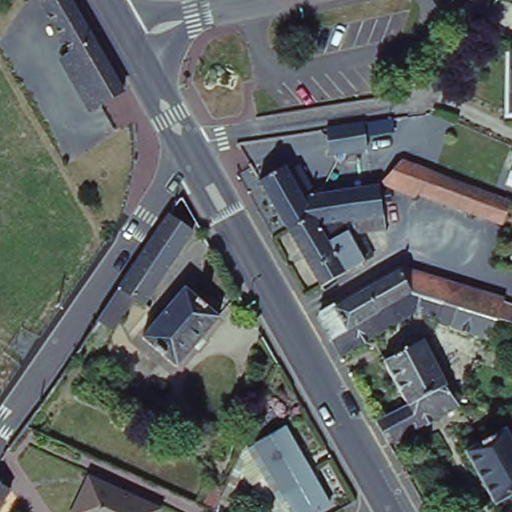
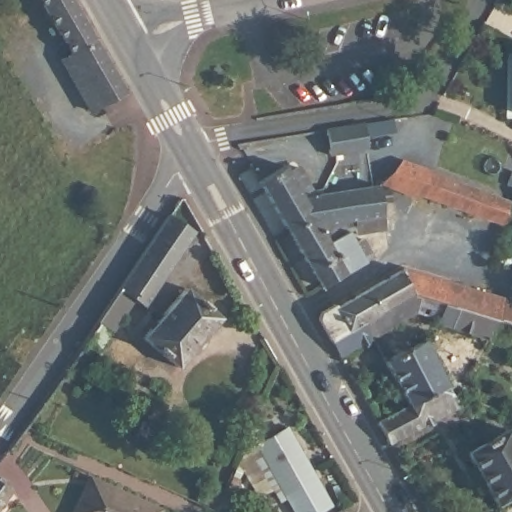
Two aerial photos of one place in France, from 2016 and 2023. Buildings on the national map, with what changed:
unchanged [(124,96),(94,114),(64,62),(74,57),(42,0),(70,0),(124,96)]
unchanged [(506,51),(512,51),(512,110),(508,110),(506,51)]
unchanged [(412,129),(365,137),(367,152),(327,158),(323,132),(409,118),(412,129)]
unchanged [(474,215),(417,193),(414,198),(380,185),(399,164),(483,195),(507,203),(508,204),(501,225),(474,215)]
unchanged [(351,237),(349,225),(318,229),(311,218),(285,233),(256,182),(283,168),(287,176),(297,170),(313,197),(375,190),(379,222),(380,234),(351,237)]
unchanged [(100,312),(145,245),(165,215),(190,232),(141,303),(132,297),(115,322),(110,331),(98,351),(82,341),(95,321),(100,312)]
unchanged [(311,218),(318,229),(315,229),(324,246),(342,235),(349,247),(358,242),(368,259),(319,289),(285,233),(311,218)]
unchanged [(496,324),(487,322),(410,298),(329,342),(316,319),(318,313),(332,306),(334,308),(401,271),(503,303),(502,305),(512,308),(512,329),(496,324)]
unchanged [(174,367),(140,337),(158,316),(183,287),(217,316),(174,367)]
unchanged [(410,298),(487,322),(479,342),(438,328),(439,323),(418,317),(339,361),(329,342),(410,298)]
unchanged [(382,365),(401,355),(402,356),(424,344),(447,389),(442,391),(441,389),(406,409),(405,407),(382,365)]
unchanged [(405,407),(406,409),(441,389),(442,391),(446,395),(457,408),(387,447),(374,425),(405,407)]
unchanged [(325,508),(319,512),(289,512),(253,447),(282,432),(325,508)]
unchanged [(504,432),(512,445),(512,497),(493,508),(464,454),(504,432)]
unchanged [(159,509),(158,512),(75,512),(89,478),(159,509)]
unchanged [(0,502),(0,486),(8,492),(0,502)]

